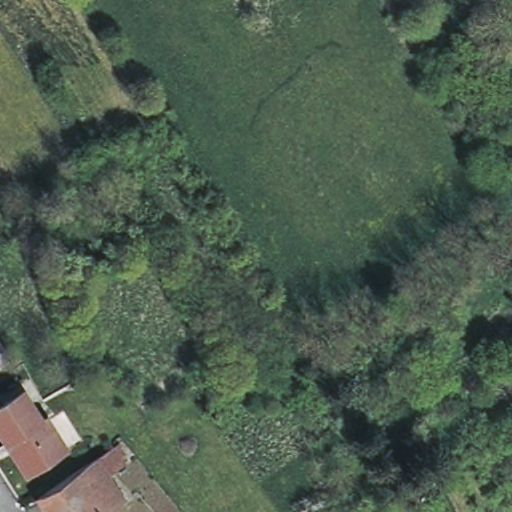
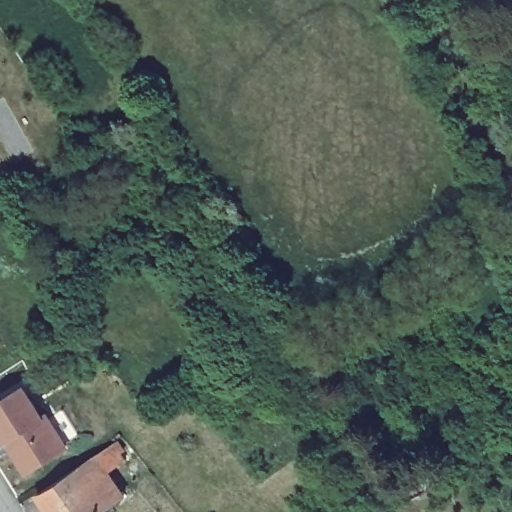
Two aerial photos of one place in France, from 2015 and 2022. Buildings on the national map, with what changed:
unchanged [(13,358),(0,366),(0,337),(13,358)]
unchanged [(24,388),(40,415),(45,413),(66,446),(30,470),(21,467),(15,456),(16,449),(9,437),(5,440),(0,432),(0,402),(24,388)]
unchanged [(107,473),(124,498),(103,512),(50,512),(37,493),(112,444),(125,461),(107,473)]

